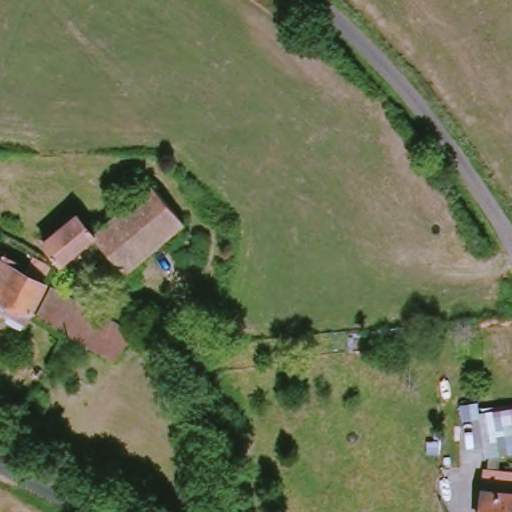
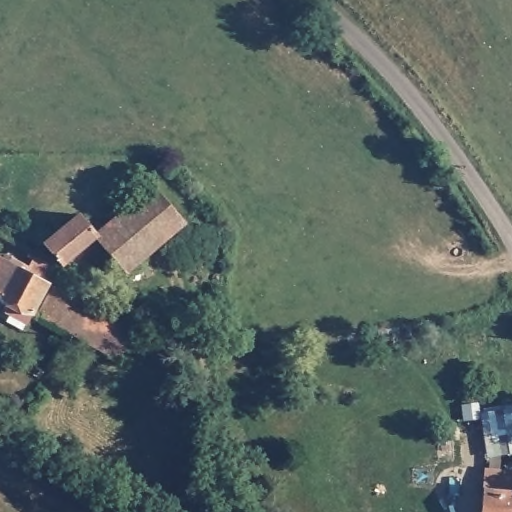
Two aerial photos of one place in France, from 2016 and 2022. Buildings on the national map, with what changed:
unchanged [(188,227),(127,276),(98,241),(70,267),(48,252),(80,222),(99,237),(156,194),(188,227)]
unchanged [(120,363),(35,312),(33,317),(35,318),(30,324),(13,314),(16,307),(5,302),(8,296),(0,292),(0,259),(12,263),(15,257),(27,265),(34,270),(31,275),(57,289),(135,333),(120,363)]
unchanged [(512,456),(488,458),(481,413),(512,409),(512,456)]
unchanged [(504,467),(512,468),(512,512),(484,512),(490,466),(504,467)]

